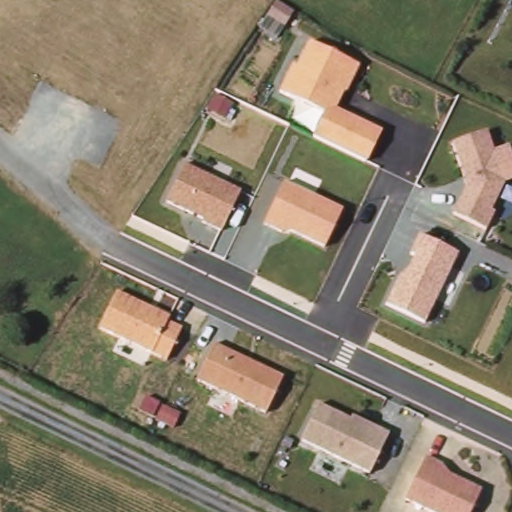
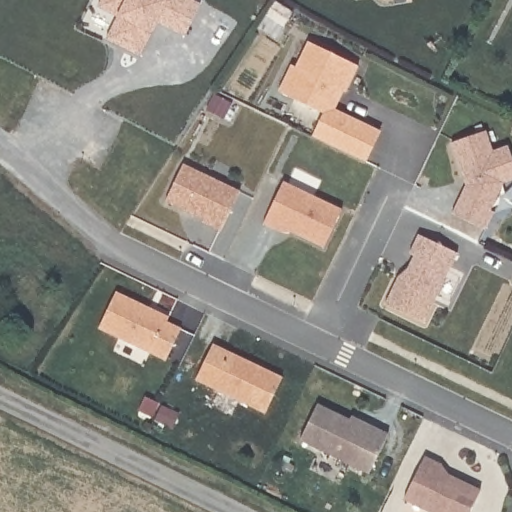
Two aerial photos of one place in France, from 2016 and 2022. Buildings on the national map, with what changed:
new [(186,36),(158,22),(153,34),(141,56),(105,40),(118,17),(97,7),(101,0),(195,0),(202,3),(186,36)]
unchanged [(357,63),(334,109),(381,132),(364,164),(310,137),(312,131),(283,117),(291,98),(275,90),(288,62),(295,66),(305,40),(357,63)]
unchanged [(452,142),(487,130),(495,149),(509,144),(512,156),(512,181),(504,184),(493,209),(495,210),(486,229),(453,213),(467,185),(452,142)]
unchanged [(203,217),(168,202),(185,163),(243,189),(224,231),(202,222),(203,217)]
unchanged [(343,207),(322,247),(290,232),(287,237),(258,223),(279,181),(343,207)]
unchanged [(387,303),(400,275),(409,268),(416,254),(410,252),(418,234),(458,255),(427,322),(387,303)]
unchanged [(169,315),(165,322),(179,329),(161,361),(93,328),(112,289),(169,315)]
unchanged [(284,376),(264,415),(190,377),(209,340),(284,376)]
unchanged [(347,417),(351,412),(388,432),(363,477),(293,440),(316,400),(347,417)]
unchanged [(443,463),(446,473),(481,490),(469,512),(434,512),(404,496),(426,453),(443,463)]

